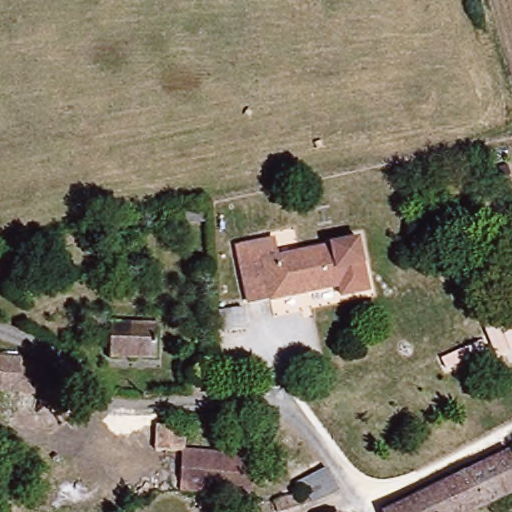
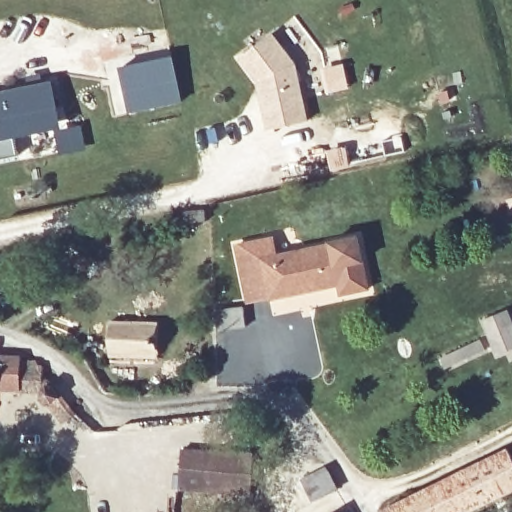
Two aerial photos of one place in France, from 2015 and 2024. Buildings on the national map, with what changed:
new [(244,56),(274,33),(298,64),(309,121),(272,128),(265,99),(261,79),(244,56)]
new [(174,56),(183,103),(129,114),(119,67),(174,56)]
new [(16,137),(20,154),(0,158),(0,91),(54,81),(60,118),(63,128),(31,134),(16,137)]
unchanged [(275,298),(249,304),(237,256),(263,250),(266,258),(324,243),(356,236),(372,292),(335,302),(330,287),(278,300),(275,298)]
unchanged [(491,349),(488,312),(512,311),(512,347),(491,349)]
unchanged [(159,365),(109,366),(112,326),(142,328),(144,315),(164,315),(159,365)]
unchanged [(33,372),(51,374),(53,390),(0,393),(0,361),(27,362),(33,372)]
unchanged [(252,457),(252,464),(182,470),(178,451),(251,445),(252,457)]
unchanged [(512,452),(512,491),(466,512),(384,512),(383,511),(512,452)]
unchanged [(290,464),(310,459),(314,471),(325,467),(344,492),(320,497),(317,504),(289,510),(285,488),(297,485),(290,464)]
unchanged [(220,511),(217,492),(182,494),(182,470),(252,464),(253,475),(253,487),(255,505),(220,511)]

